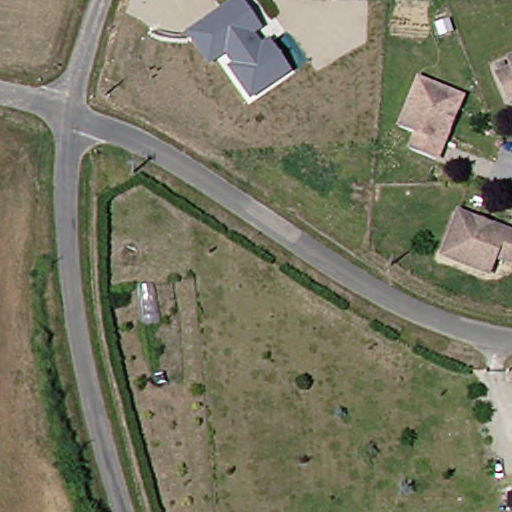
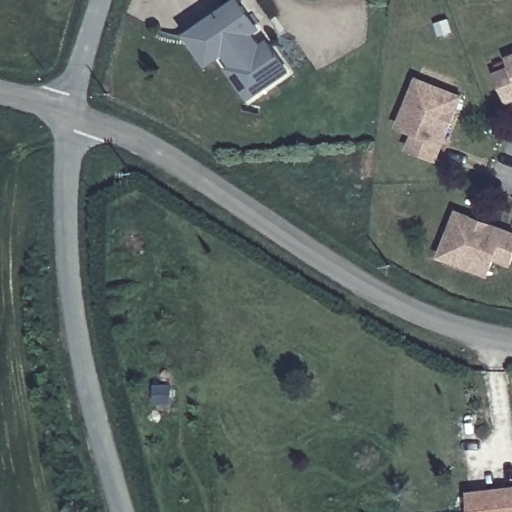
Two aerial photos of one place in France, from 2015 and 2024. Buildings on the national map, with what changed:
unchanged [(243,0),(263,29),(254,35),(261,47),(270,41),(291,72),(249,102),(225,69),(231,65),(224,56),(209,69),(185,34),(236,0),(243,0)]
unchanged [(494,105),(482,74),(501,66),(497,55),(512,49),(512,97),(494,105)]
unchanged [(431,165),(401,152),(408,132),(392,126),(410,79),(458,97),(431,165)]
unchanged [(512,235),(512,254),(508,265),(491,258),(483,274),(431,253),(450,211),(512,235)]
new [(512,490),(512,512),(468,512),(466,496),(501,491),(512,490)]

